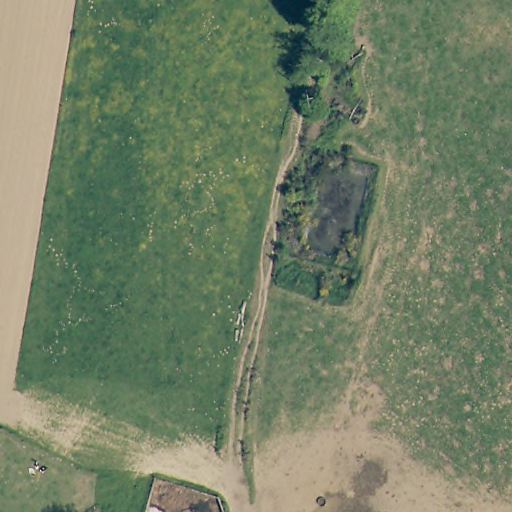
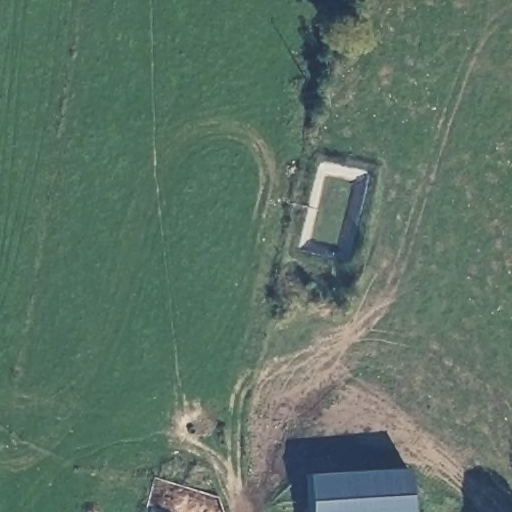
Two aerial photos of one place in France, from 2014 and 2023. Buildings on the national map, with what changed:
new [(409,512),(309,512),(306,473),(407,467),(409,512)]

